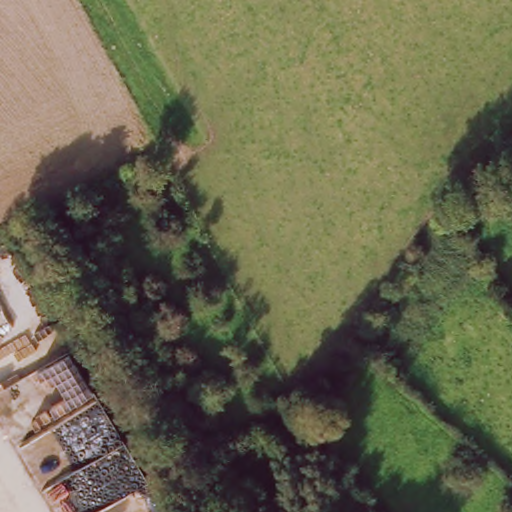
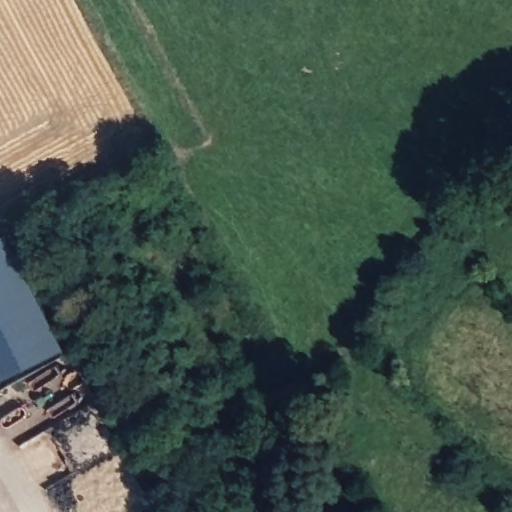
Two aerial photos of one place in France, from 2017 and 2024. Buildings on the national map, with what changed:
new [(12,231),(68,349),(0,382),(0,237),(12,231)]

